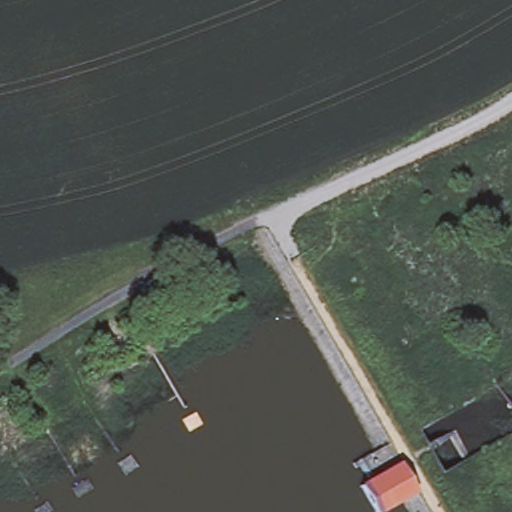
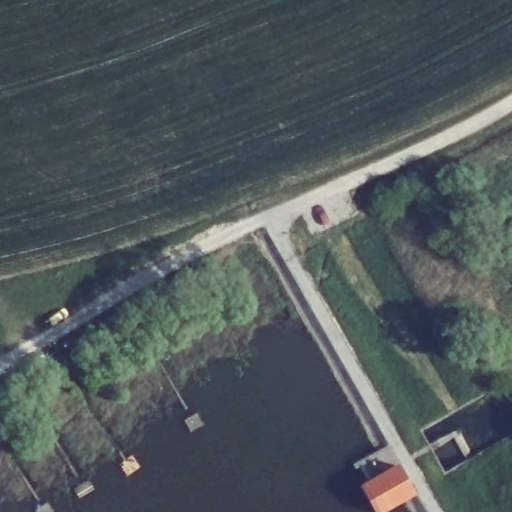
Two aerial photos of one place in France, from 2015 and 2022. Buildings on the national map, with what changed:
unchanged [(417,494),(386,512),(369,512),(356,485),(398,462),(417,494)]

